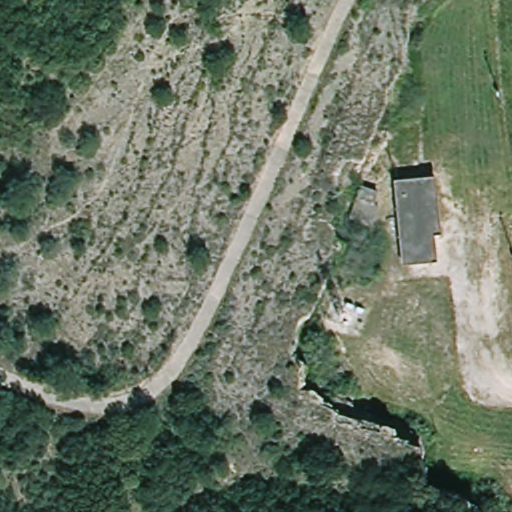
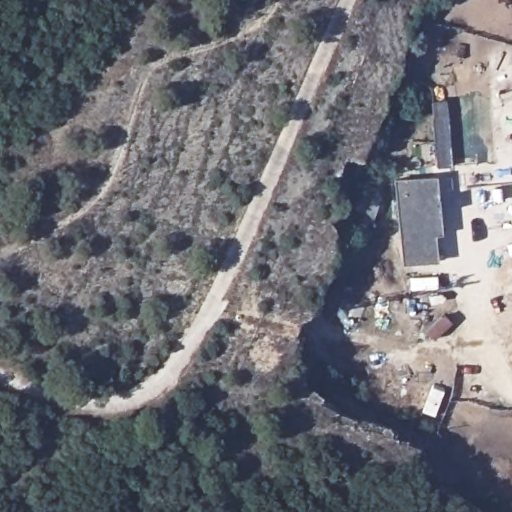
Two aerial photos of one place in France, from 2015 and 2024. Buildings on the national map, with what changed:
new [(452,169),(436,169),(431,102),(448,102),(452,169)]
unchanged [(398,174),(434,172),(436,195),(429,196),(432,228),(435,260),(404,262),(398,174)]

